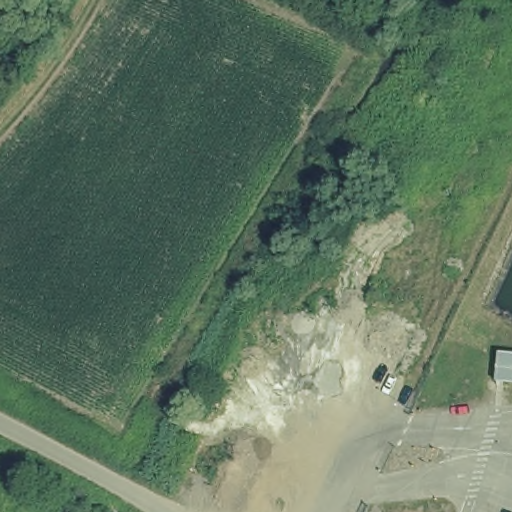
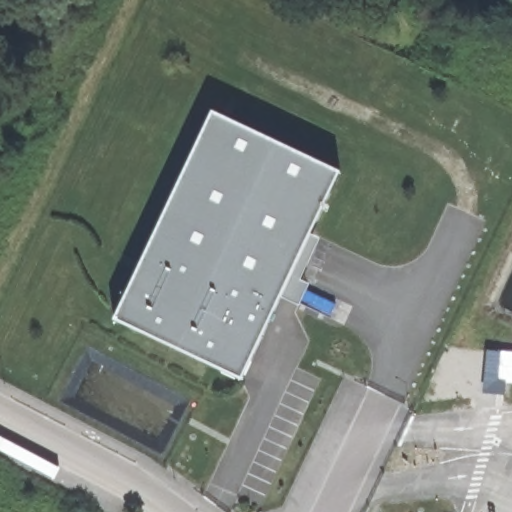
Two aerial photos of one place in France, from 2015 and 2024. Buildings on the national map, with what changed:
new [(114,321),(214,111),(340,173),(310,233),(321,238),(303,280),(310,283),(299,306),(281,296),(242,377),(114,321)]
unchanged [(512,349),(512,379),(497,377),(500,347),(512,349)]

